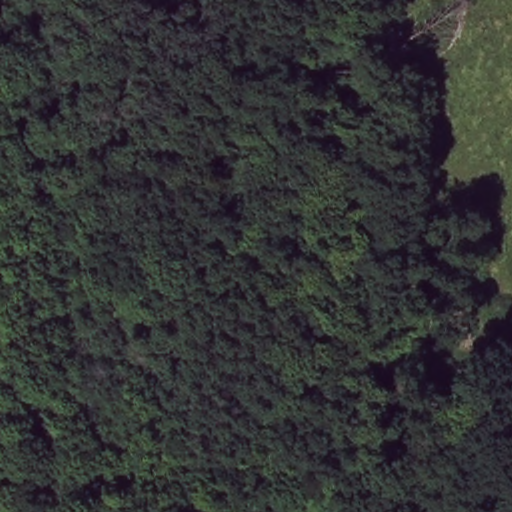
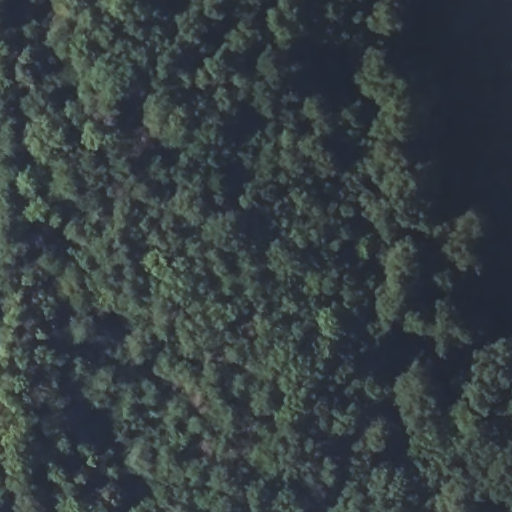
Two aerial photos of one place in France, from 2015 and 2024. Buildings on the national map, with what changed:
[]

